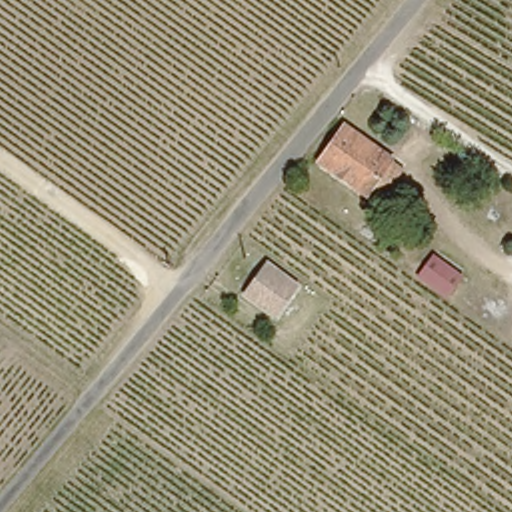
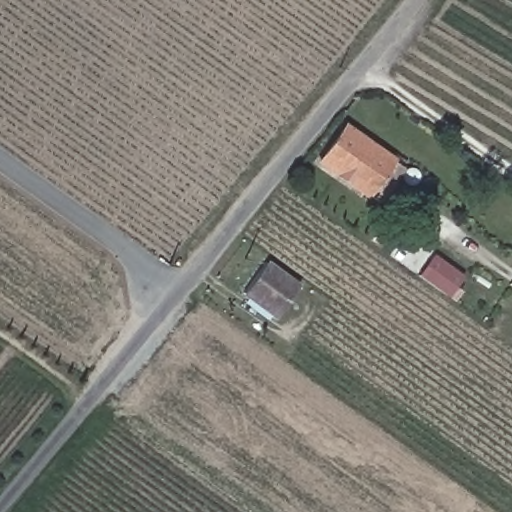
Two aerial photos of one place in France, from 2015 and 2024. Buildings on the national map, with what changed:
unchanged [(376,202),(361,191),(316,159),(340,126),(384,157),(375,171),(390,182),(376,202)]
unchanged [(270,313),(237,290),(259,259),(292,282),(270,313)]
unchanged [(441,297),(413,278),(427,259),(455,278),(441,297)]

